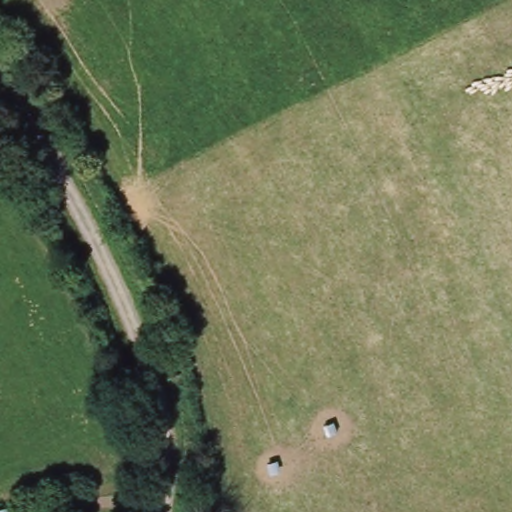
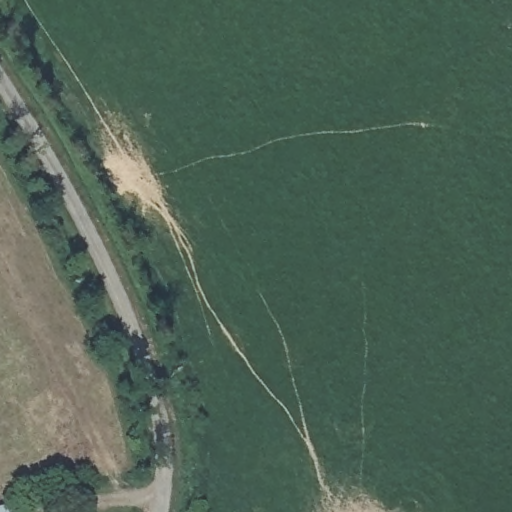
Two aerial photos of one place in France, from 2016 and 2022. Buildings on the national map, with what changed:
unchanged [(15,512),(2,512),(15,509),(15,512)]

